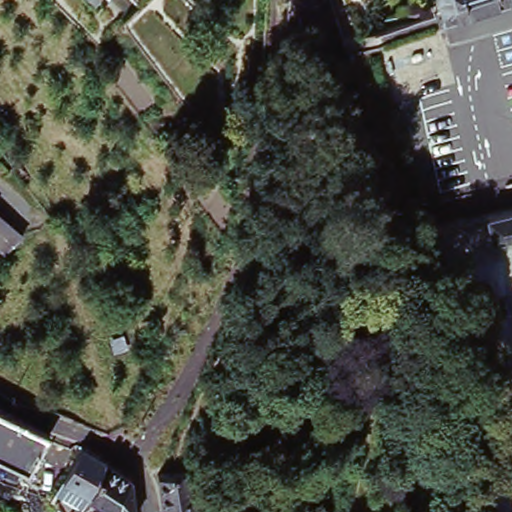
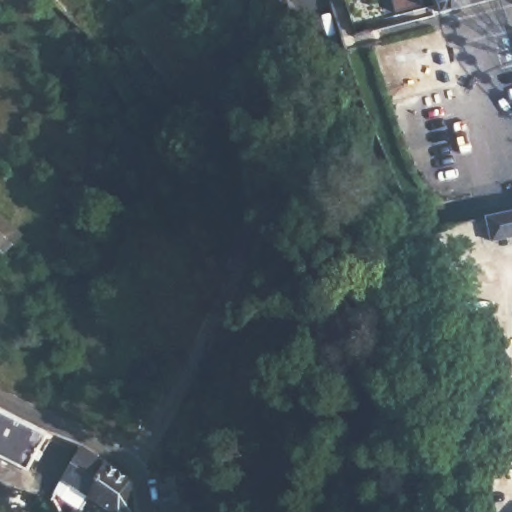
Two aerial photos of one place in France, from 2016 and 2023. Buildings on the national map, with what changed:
unchanged [(487,0),(440,13),(436,0),(487,0)]
unchanged [(255,118),(240,116),(244,88),(260,91),(255,118)]
unchanged [(512,210),(512,237),(498,241),(491,214),(512,210)]
unchanged [(13,232),(3,243),(0,240),(0,223),(2,221),(13,232)]
unchanged [(0,408),(0,406),(1,407),(0,408)]
unchanged [(0,408),(1,407),(50,432),(29,468),(0,453),(0,408)]
unchanged [(92,454),(107,465),(89,499),(80,512),(55,497),(83,450),(92,454)]
unchanged [(194,488),(196,505),(167,510),(158,465),(191,459),(195,487),(194,488)]
unchanged [(89,499),(107,465),(118,473),(131,483),(135,512),(108,512),(89,499)]

